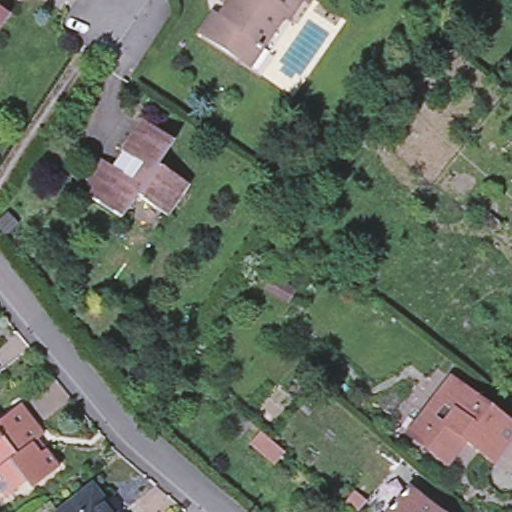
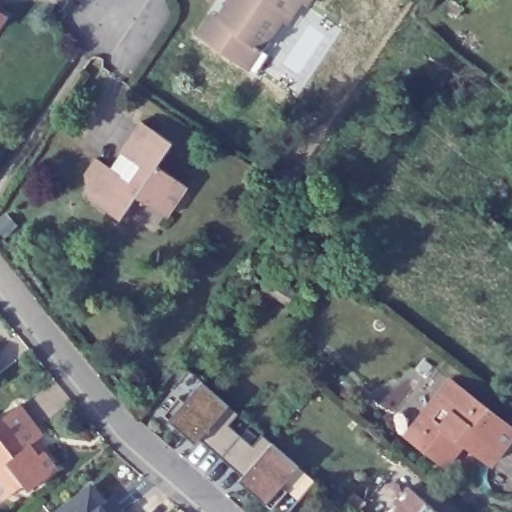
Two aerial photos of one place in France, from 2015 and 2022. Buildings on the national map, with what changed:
unchanged [(222,23),(230,11),(225,8),(230,0),(307,0),(303,6),(298,3),(284,25),(278,21),(257,52),(245,44),(235,59),(199,35),(212,16),(222,23)]
unchanged [(14,20),(7,33),(0,29),(0,6),(2,13),(14,20)]
unchanged [(97,161),(111,170),(124,178),(135,162),(122,153),(142,123),(174,143),(157,168),(186,186),(167,216),(137,197),(122,220),(92,198),(87,175),(97,161)]
unchanged [(435,400),(450,380),(512,429),(512,438),(490,466),(462,444),(444,467),(419,447),(405,437),(435,400)]
new [(180,401),(185,405),(202,385),(239,417),(230,428),(242,438),(222,461),(201,442),(188,439),(164,418),(180,401)]
unchanged [(45,436),(39,442),(45,451),(60,471),(31,493),(25,486),(4,501),(0,496),(0,422),(22,406),(45,436)]
new [(242,438),(254,449),(263,437),(300,469),(283,489),(289,493),(273,511),(249,490),(244,479),(222,461),(242,438)]
unchanged [(414,489),(440,512),(394,512),(414,489)]
unchanged [(90,491),(107,512),(62,512),(90,491)]

